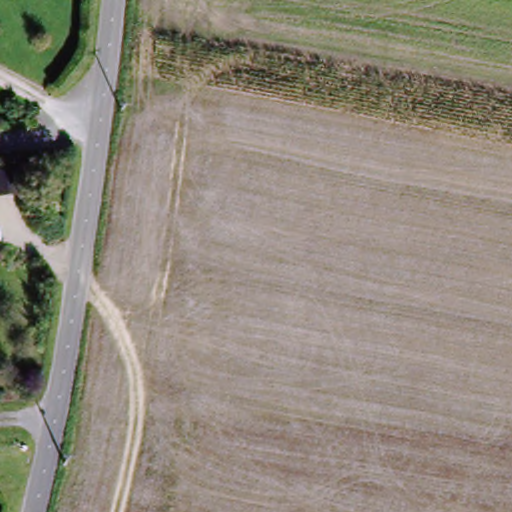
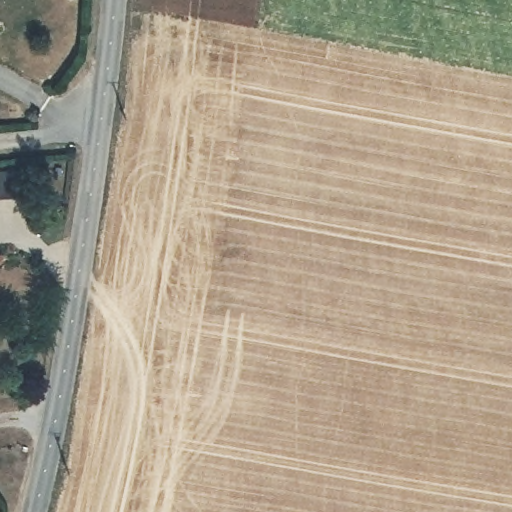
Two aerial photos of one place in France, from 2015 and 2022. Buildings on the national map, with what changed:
unchanged [(29,194),(10,196),(7,168),(26,167),(29,194)]

